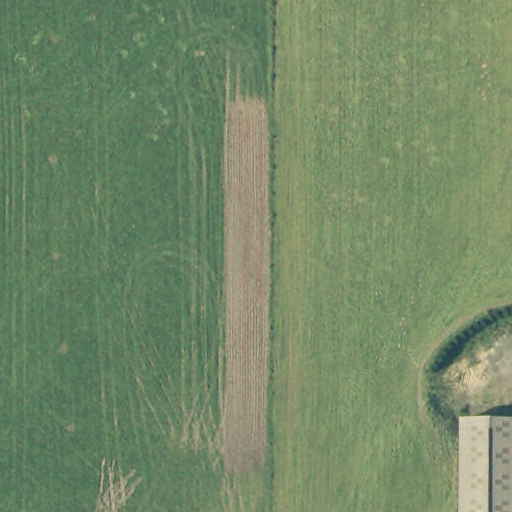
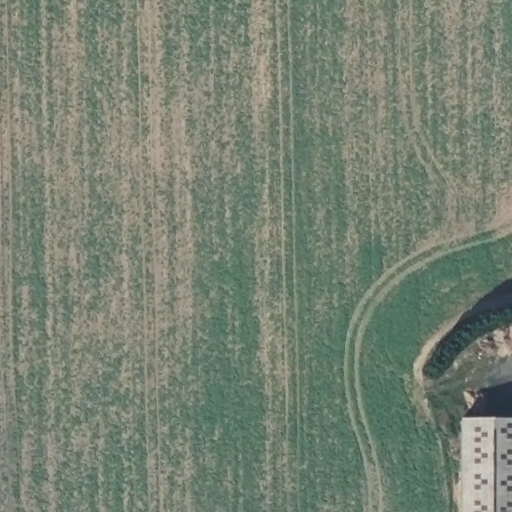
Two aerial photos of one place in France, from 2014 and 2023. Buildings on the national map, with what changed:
unchanged [(457,512),(458,423),(512,423),(512,512),(457,512)]

